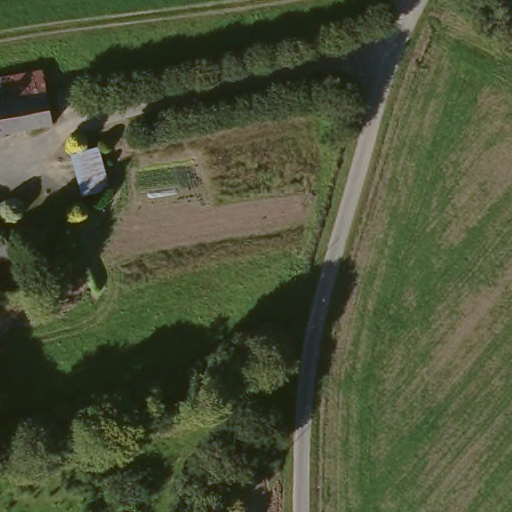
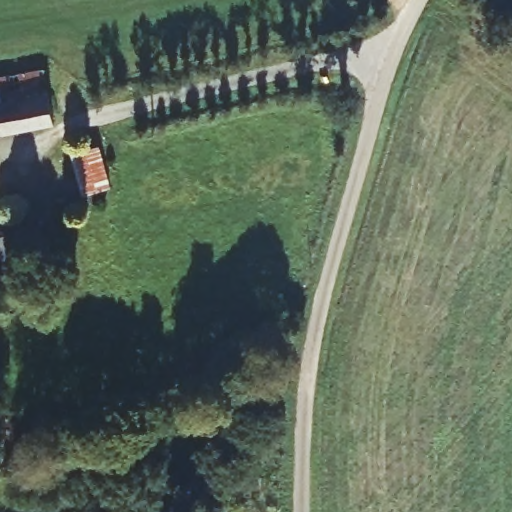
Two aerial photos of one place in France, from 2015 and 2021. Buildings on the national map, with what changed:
unchanged [(34,59),(41,88),(16,92),(0,95),(0,67),(34,59)]
unchanged [(16,92),(41,88),(48,123),(0,132),(0,95),(16,92)]
unchanged [(73,153),(100,146),(111,187),(83,194),(73,153)]
unchanged [(10,258),(0,262),(0,236),(6,235),(10,258)]

